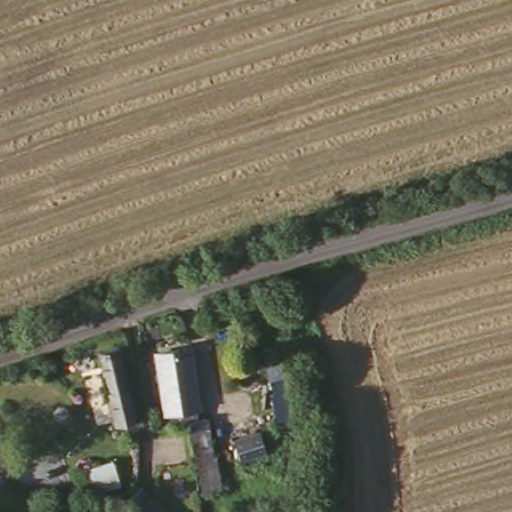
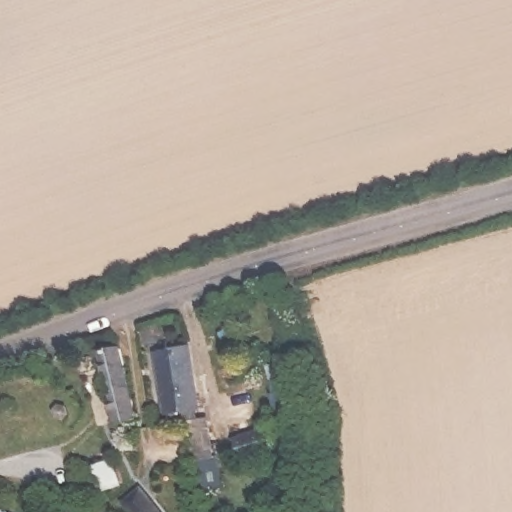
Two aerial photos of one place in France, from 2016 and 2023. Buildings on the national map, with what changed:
unchanged [(129,337),(143,419),(108,427),(96,343),(129,337)]
unchanged [(195,339),(202,413),(215,413),(230,492),(201,494),(189,428),(163,427),(155,346),(195,339)]
unchanged [(271,446),(237,457),(229,433),(263,423),(271,446)]
unchanged [(119,474),(82,490),(76,468),(110,458),(119,474)]
unchanged [(123,512),(116,505),(143,481),(171,512),(123,512)]

